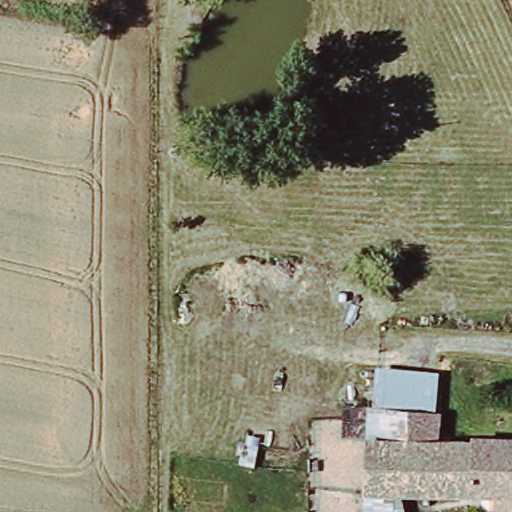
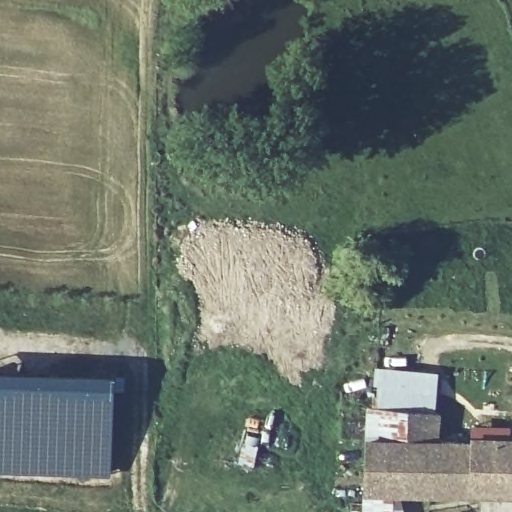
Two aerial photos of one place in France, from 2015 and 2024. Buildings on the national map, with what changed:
new [(114,375),(111,476),(0,472),(0,371),(114,375)]
unchanged [(494,496),(362,493),(365,409),(377,409),(378,376),(438,377),(437,444),(476,444),(476,441),(512,441),(512,510),(495,510),(494,496)]

